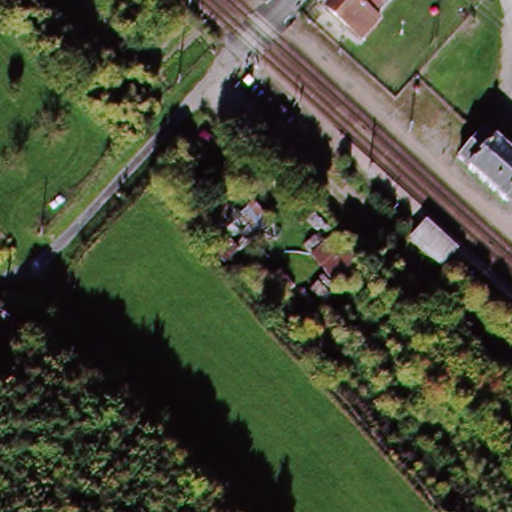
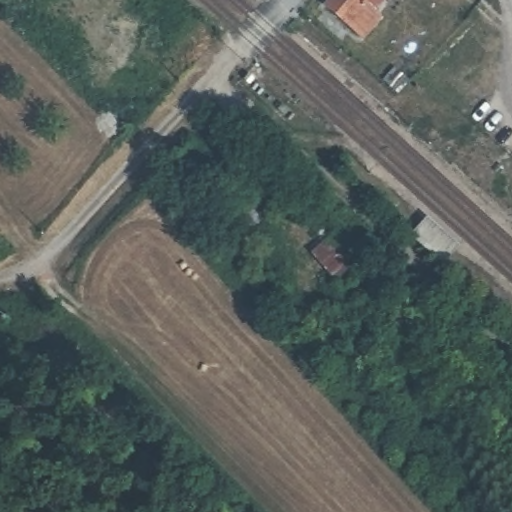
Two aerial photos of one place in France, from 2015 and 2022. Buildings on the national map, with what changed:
unchanged [(342,26),(326,11),(336,0),(377,0),(366,12),(374,20),(356,39),(342,26)]
demolished [(504,152),(512,160),(512,212),(499,204),(457,160),(481,135),(504,152)]
unchanged [(225,268),(190,231),(223,202),(237,216),(253,201),(274,226),(225,268)]
unchanged [(457,252),(441,270),(409,242),(425,224),(457,252)]
unchanged [(329,236),(365,278),(342,295),(302,251),(329,236)]

